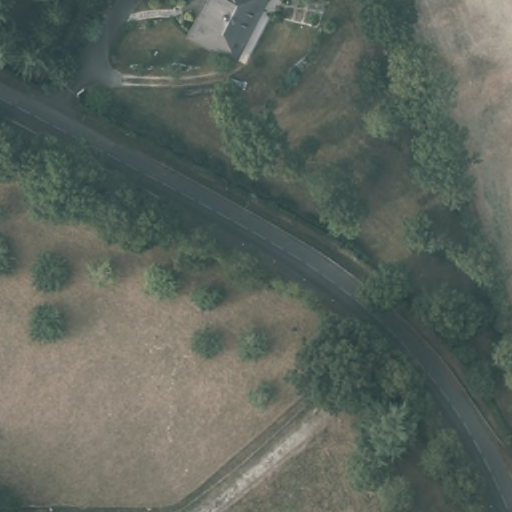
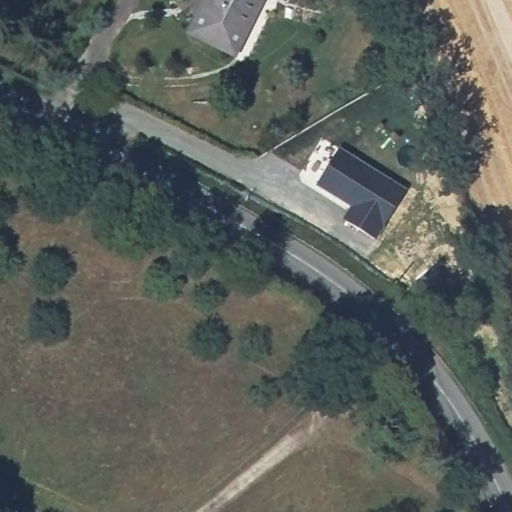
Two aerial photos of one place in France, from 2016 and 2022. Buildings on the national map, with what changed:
unchanged [(249,24),(236,52),(234,51),(195,32),(210,0),(260,0),(249,24)]
new [(339,149),(407,190),(377,239),(345,220),(352,206),(317,185),(339,149)]

